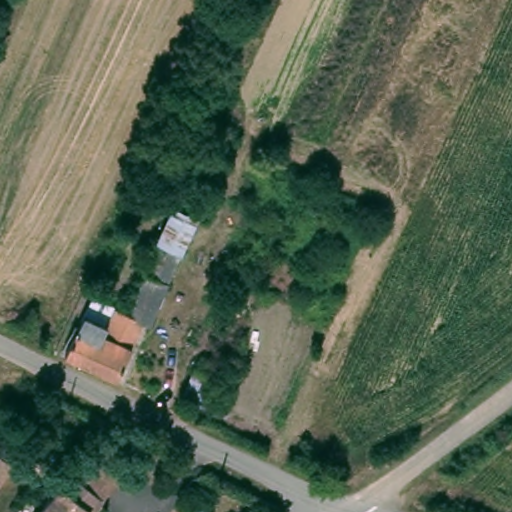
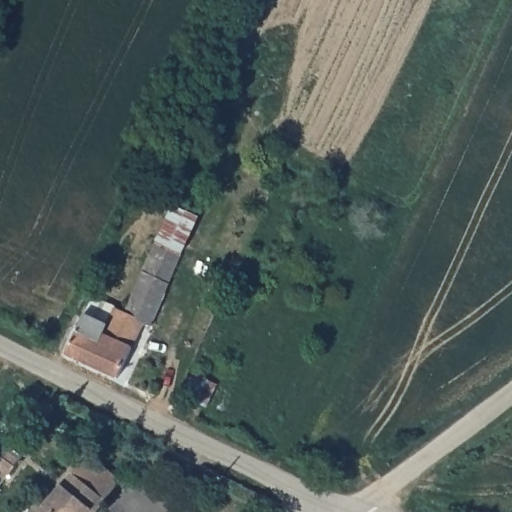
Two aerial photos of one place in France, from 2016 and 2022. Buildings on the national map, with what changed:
unchanged [(96,294),(131,313),(174,204),(203,216),(152,324),(145,321),(118,376),(65,357),(96,294)]
unchanged [(4,448),(17,432),(33,444),(21,461),(4,448)]
unchanged [(73,472),(89,453),(121,479),(105,499),(73,472)]
unchanged [(0,472),(0,461),(5,465),(0,472)]
unchanged [(73,472),(105,499),(106,499),(96,512),(39,512),(72,472),(73,472)]

